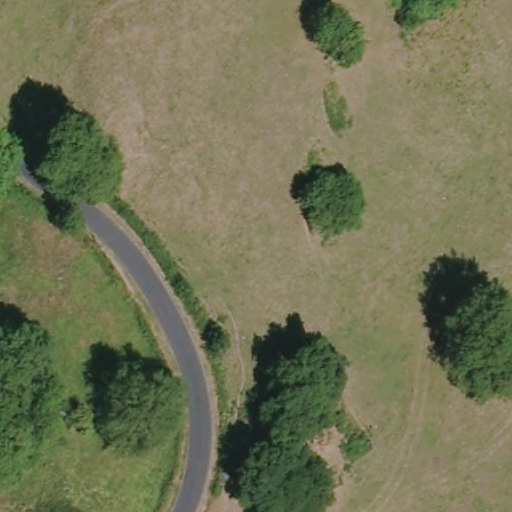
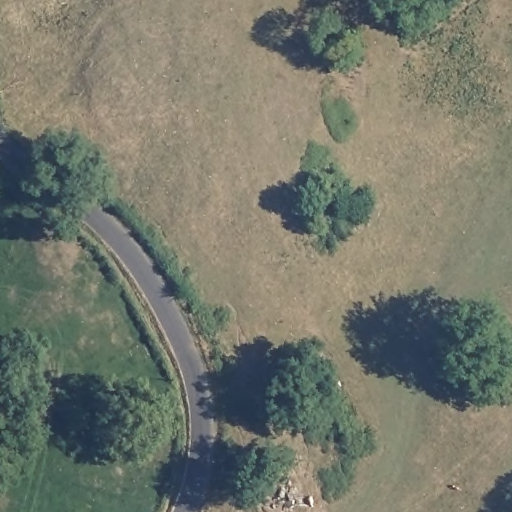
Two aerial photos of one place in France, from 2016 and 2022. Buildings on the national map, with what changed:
[]

